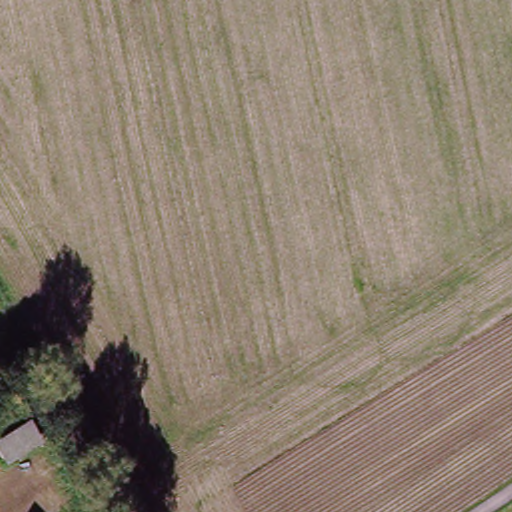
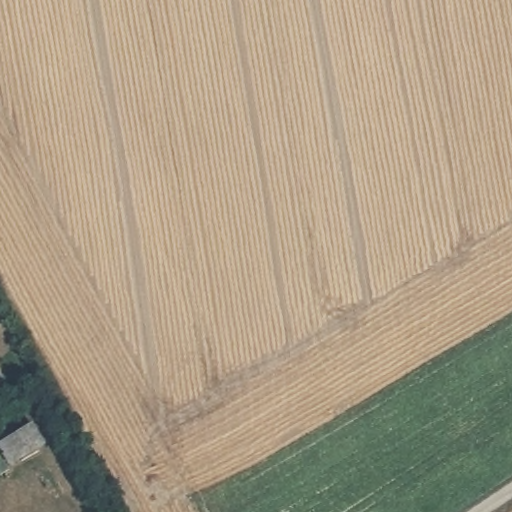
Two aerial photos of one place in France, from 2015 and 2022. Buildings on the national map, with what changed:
unchanged [(0,410),(21,394),(35,411),(3,436),(0,433),(0,410)]

